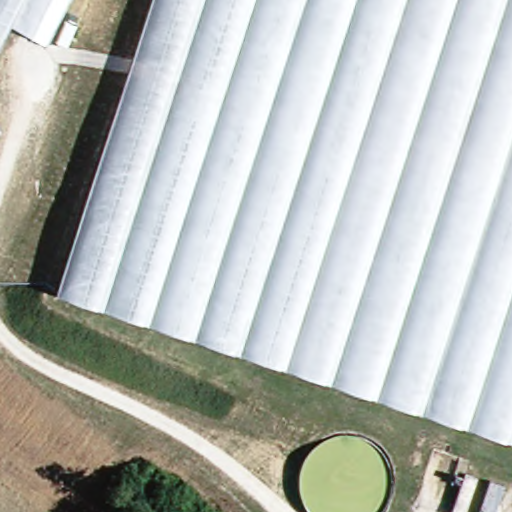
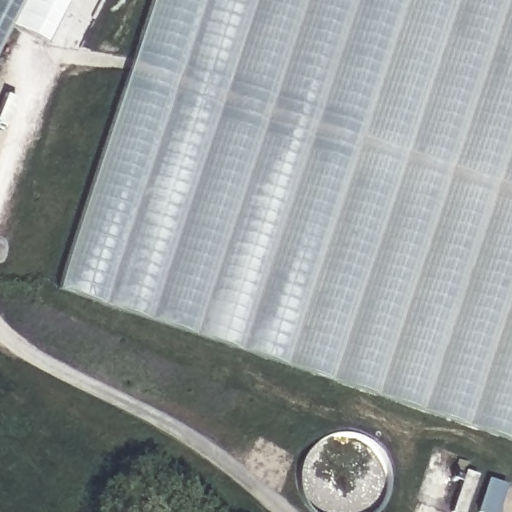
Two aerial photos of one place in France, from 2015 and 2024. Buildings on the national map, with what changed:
unchanged [(67,0),(46,43),(10,25),(0,44),(0,0),(67,0)]
unchanged [(158,0),(512,0),(512,443),(49,292),(158,0)]

